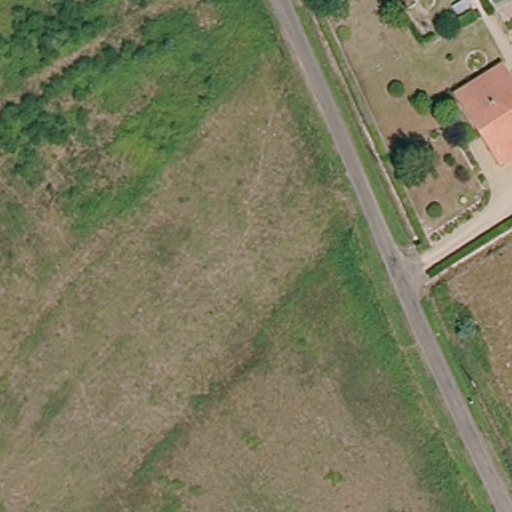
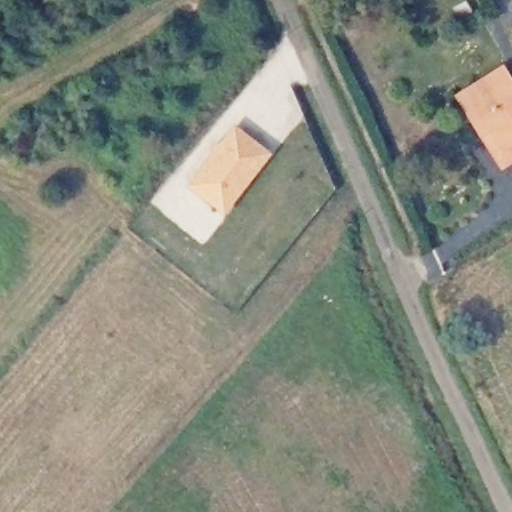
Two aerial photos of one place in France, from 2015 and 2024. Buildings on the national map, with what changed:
unchanged [(505,66),(510,74),(471,97),(498,142),(492,146),(490,148),(458,95),(505,66)]
unchanged [(512,163),(506,166),(492,146),(498,142),(471,97),(510,74),(512,76),(512,163)]
new [(187,186),(233,124),(272,154),(224,217),(187,186)]

